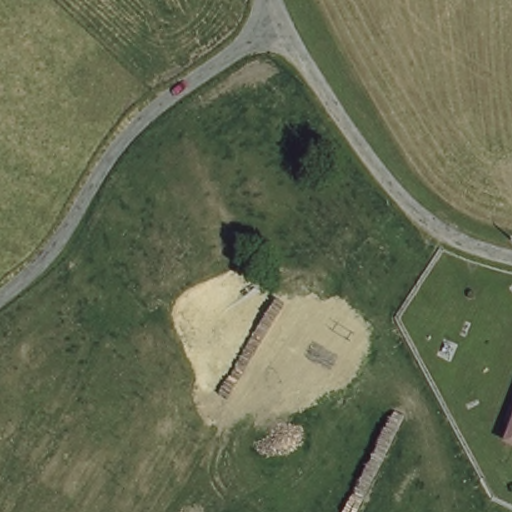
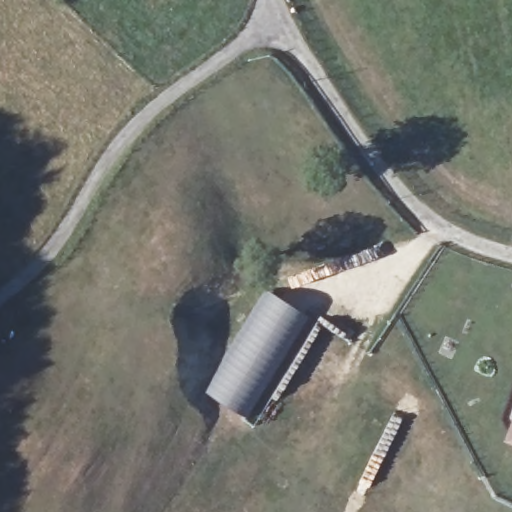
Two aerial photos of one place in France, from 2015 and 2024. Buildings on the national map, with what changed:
new [(206,393),(268,291),(312,317),(248,419),(206,393)]

